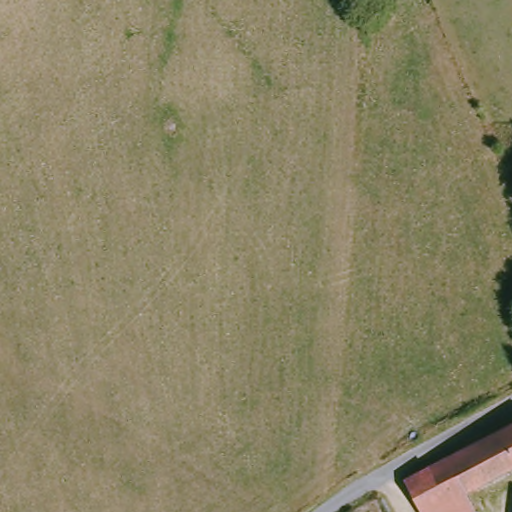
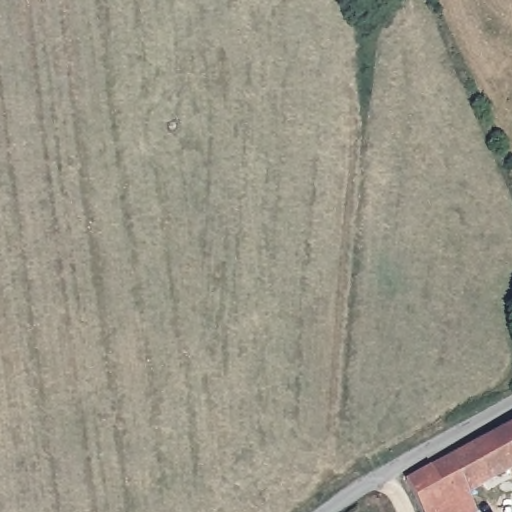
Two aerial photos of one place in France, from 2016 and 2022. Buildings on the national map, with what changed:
unchanged [(472,495),(480,512),(426,512),(410,481),(512,429),(512,473),(472,495)]

